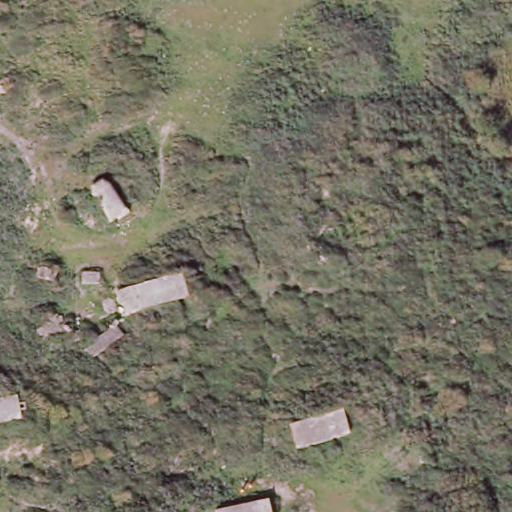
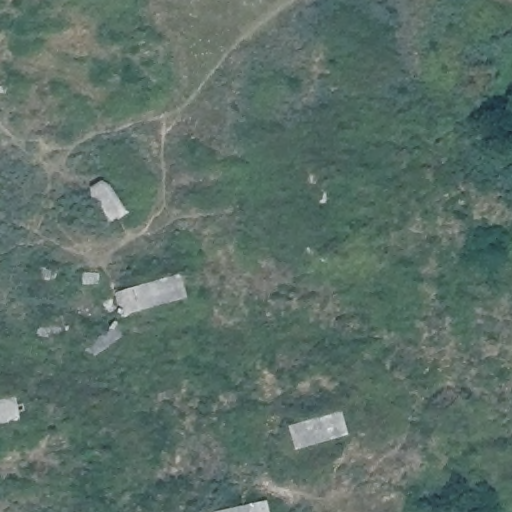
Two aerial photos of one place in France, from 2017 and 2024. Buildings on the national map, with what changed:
unchanged [(89,199),(109,184),(132,216),(112,231),(89,199)]
unchanged [(119,297),(187,281),(192,304),(129,322),(119,297)]
unchanged [(23,403),(26,428),(0,433),(0,406),(23,403)]
unchanged [(290,433),(345,416),(352,442),(297,460),(290,433)]
unchanged [(271,506),(273,512),(237,512),(271,506)]

